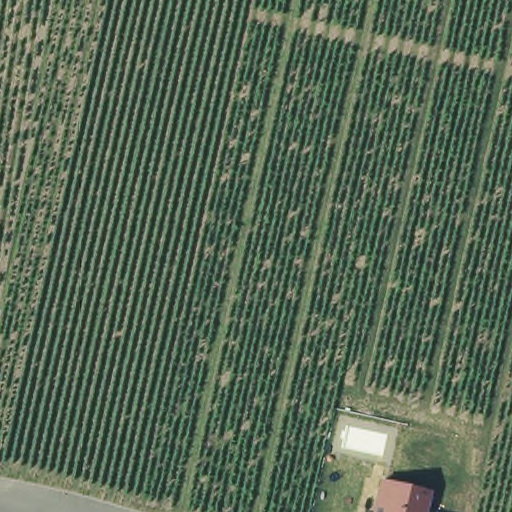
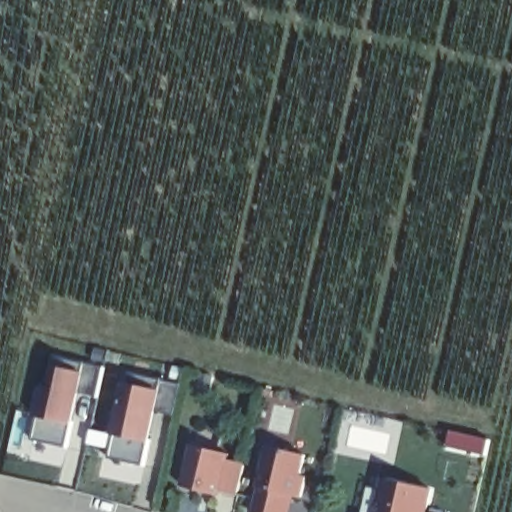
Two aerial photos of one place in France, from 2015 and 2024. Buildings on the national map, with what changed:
new [(37,416),(31,414),(36,393),(42,395),(52,355),(106,367),(98,397),(80,394),(80,393),(74,392),(67,420),(72,421),(67,447),(31,440),(37,416)]
new [(186,387),(178,416),(164,412),(157,445),(152,443),(148,467),(112,460),(132,373),(165,382),(186,387)]
new [(492,440),(489,457),(450,448),(454,433),(492,440)]
new [(237,497),(223,493),(222,497),(182,487),(193,445),(232,455),(231,461),(245,464),(237,497)]
new [(303,475),(308,477),(302,498),(297,497),(293,512),(252,512),(269,446),(308,455),(303,475)]
unchanged [(434,491),(429,512),(373,512),(381,479),(434,491)]

